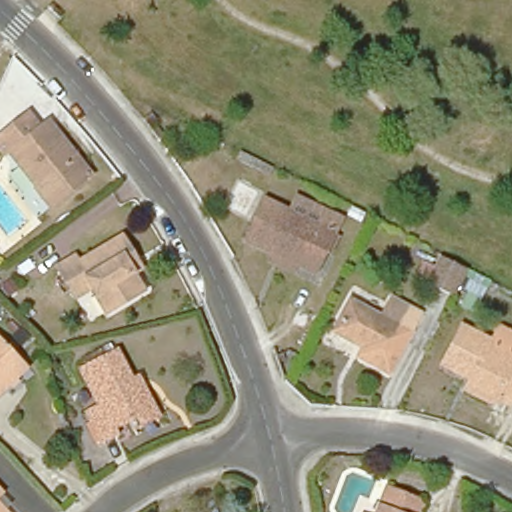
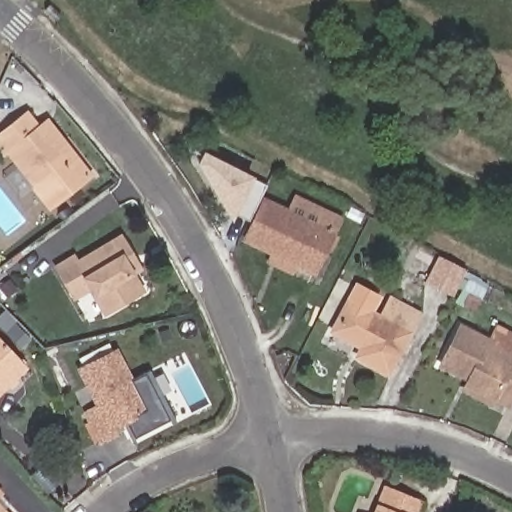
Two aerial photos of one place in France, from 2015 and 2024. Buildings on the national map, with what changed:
unchanged [(11,163),(8,167),(0,159),(0,150),(30,127),(41,140),(43,138),(49,133),(74,164),(88,182),(51,213),(11,163)]
new [(204,151),(255,176),(265,183),(247,217),(235,212),(232,221),(196,162),(204,151)]
unchanged [(242,233),(263,195),(289,209),(295,197),(335,219),(329,230),(311,267),(242,233)]
unchanged [(98,308),(82,284),(68,293),(51,265),(67,255),(71,261),(113,237),(124,256),(130,265),(125,269),(135,286),(98,308)]
unchanged [(414,275),(420,258),(434,265),(437,256),(466,270),(453,298),(414,275)]
unchanged [(363,349),(367,341),(336,325),(351,296),(384,314),(394,296),(420,309),(391,364),(363,349)]
unchanged [(463,324),(492,341),(489,347),(512,360),(512,400),(509,406),(470,383),(475,373),(469,369),(465,376),(441,362),(463,324)]
unchanged [(0,337),(11,349),(30,368),(0,393),(0,337)]
unchanged [(156,416),(130,429),(125,420),(109,429),(111,435),(97,441),(83,414),(96,407),(77,371),(115,353),(129,380),(137,375),(156,416)]
unchanged [(414,512),(377,512),(386,488),(419,500),(414,512)]
unchanged [(0,512),(0,507),(4,512),(0,512)]

